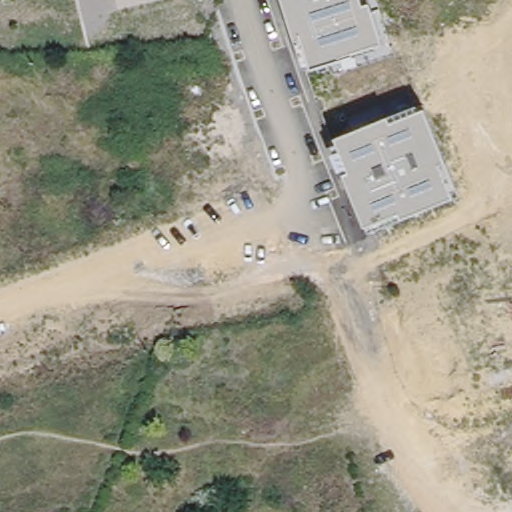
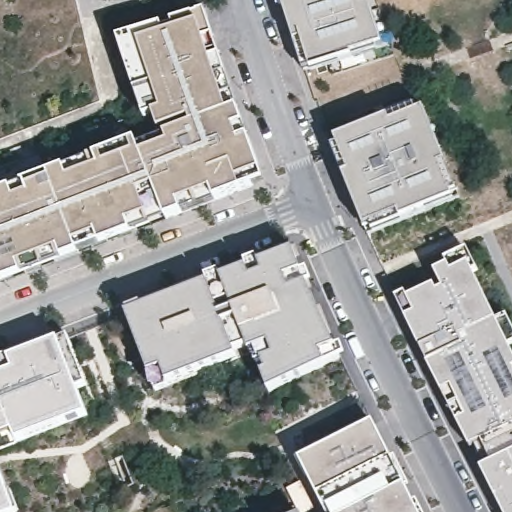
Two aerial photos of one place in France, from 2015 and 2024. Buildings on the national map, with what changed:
unchanged [(382,46),(313,71),(302,39),(295,42),(283,0),(368,0),(382,46)]
new [(152,111),(144,116),(119,37),(206,9),(233,92),(223,95),(230,112),(238,109),(265,184),(0,283),(0,193),(159,131),(152,111)]
unchanged [(332,140),(423,105),(459,196),(375,232),(373,224),(365,227),(332,140)]
new [(300,259),(348,365),(276,400),(257,361),(162,398),(134,323),(300,259)]
new [(410,298),(435,286),(438,290),(444,288),(435,271),(449,265),(452,272),(469,264),(512,350),(512,512),(503,512),(481,469),(494,463),(482,441),(470,446),(407,318),(417,314),(410,298)]
new [(87,414),(19,441),(15,430),(0,437),(0,363),(59,340),(87,414)]
new [(375,424),(407,488),(419,512),(329,512),(302,461),(375,424)]
new [(0,512),(0,472),(17,512),(0,512)]

